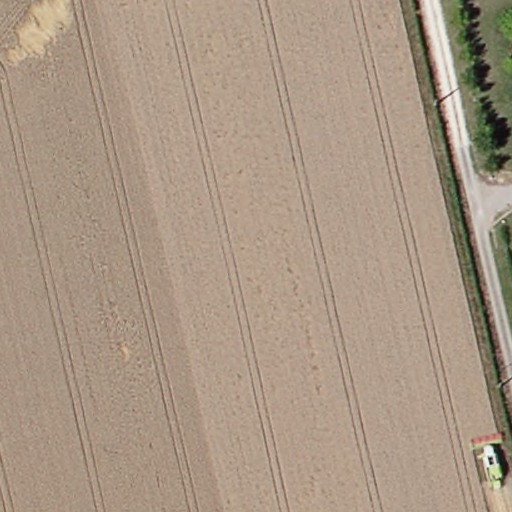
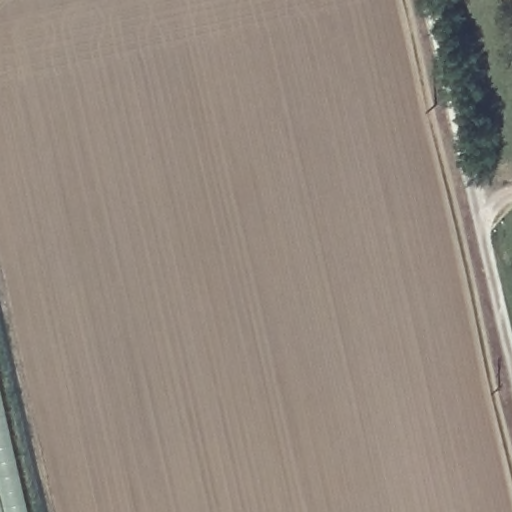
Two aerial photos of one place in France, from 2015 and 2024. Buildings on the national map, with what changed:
new [(0,364),(33,512),(0,512),(0,364)]

